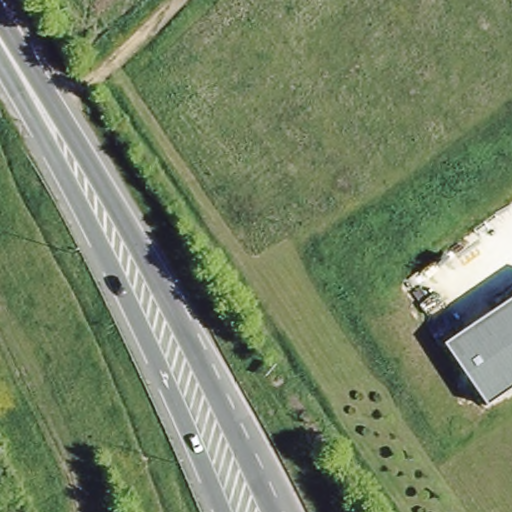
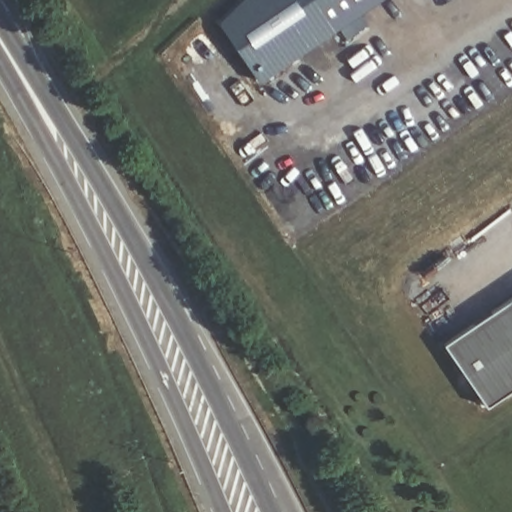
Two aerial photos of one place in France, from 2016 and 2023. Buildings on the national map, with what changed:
new [(241,0),(308,0),(329,31),(254,81),(214,22),(241,0)]
new [(329,30),(308,0),(374,0),(329,30)]
unchanged [(485,404),(443,344),(512,298),(512,386),(485,404)]

